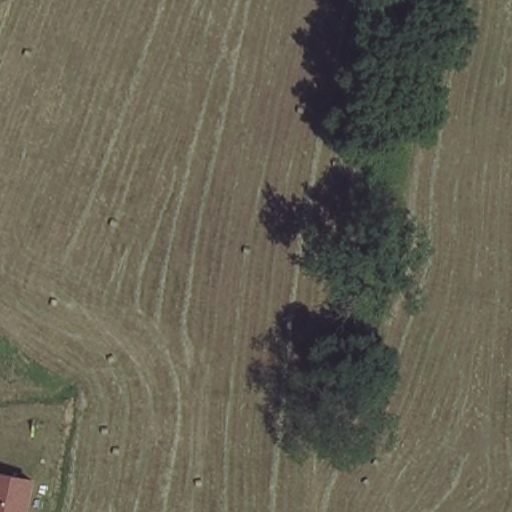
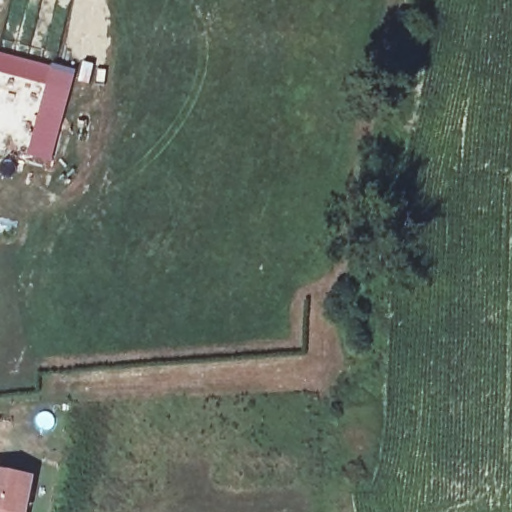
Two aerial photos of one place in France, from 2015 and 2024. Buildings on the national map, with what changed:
new [(47,85),(0,74),(0,53),(52,67),(53,65),(73,71),(50,161),(28,155),(47,85)]
unchanged [(31,512),(0,512),(0,472),(37,479),(31,512)]

